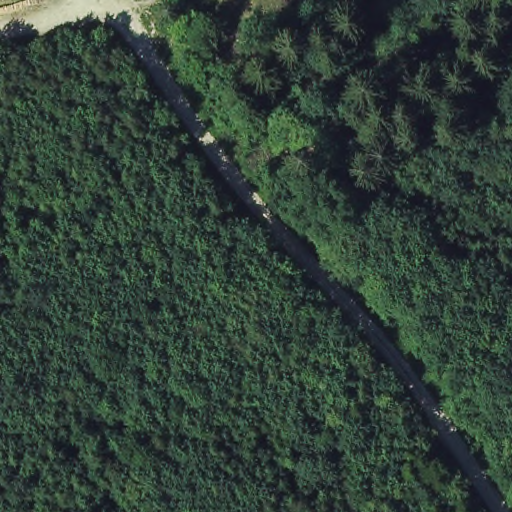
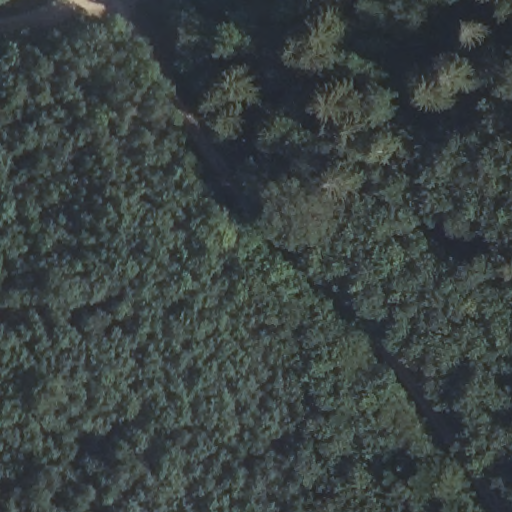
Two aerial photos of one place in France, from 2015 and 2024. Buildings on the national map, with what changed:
unchanged [(170,0),(192,0),(194,9),(170,26),(157,9),(170,0)]

